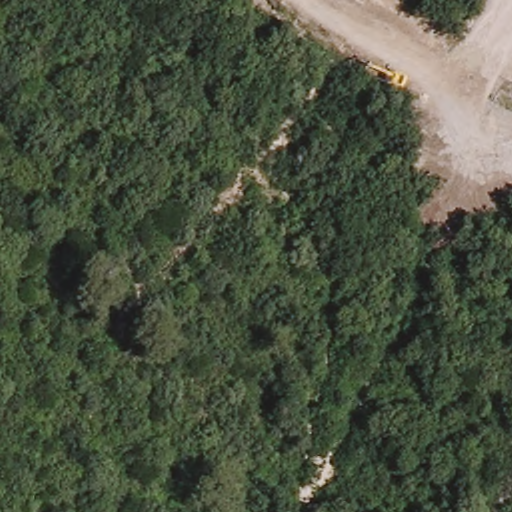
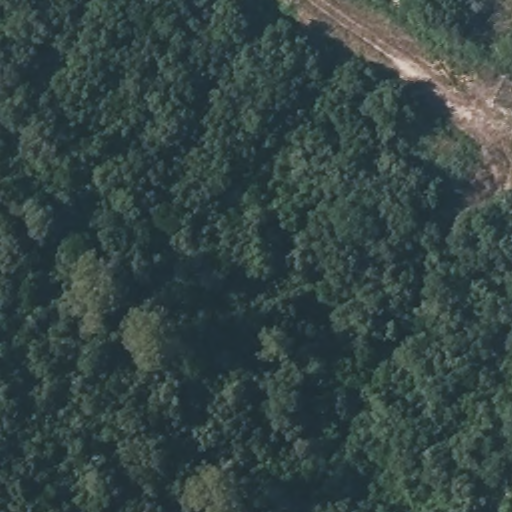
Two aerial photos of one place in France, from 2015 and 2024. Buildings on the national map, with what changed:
[]

